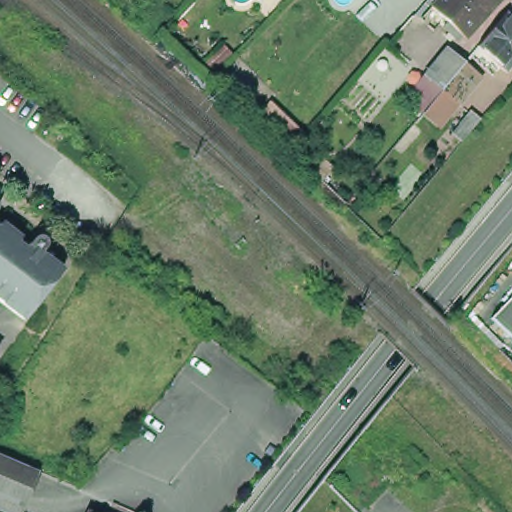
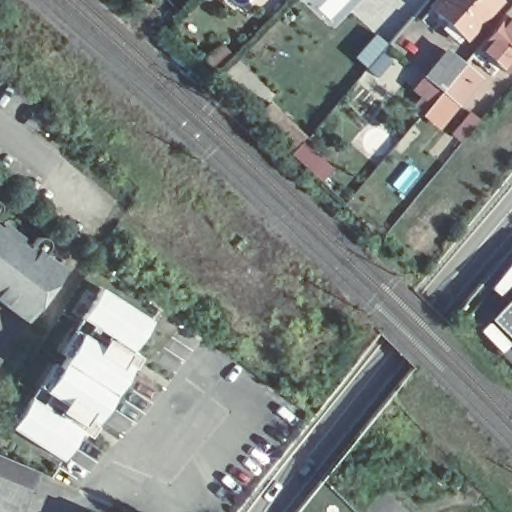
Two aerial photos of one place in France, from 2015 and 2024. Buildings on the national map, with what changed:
unchanged [(442,19),(426,4),(429,0),(488,0),(458,33),(456,31),(454,34),(450,35),(438,23),(442,19)]
unchanged [(464,51),(472,42),(499,9),(512,20),(512,55),(502,68),(489,56),(481,66),(464,51)]
unchanged [(421,25),(406,41),(397,34),(410,18),(412,16),(421,25)]
unchanged [(213,73),(204,63),(223,45),(232,55),(213,73)]
unchanged [(421,83),(426,76),(423,74),(444,48),(458,59),(474,71),(452,98),(433,121),(418,108),(432,91),(421,83)]
unchanged [(469,111),(479,120),(462,141),(452,133),(469,111)]
demolished [(55,198),(51,202),(45,197),(49,192),(48,192),(53,186),(63,174),(97,202),(86,214),(83,220),(55,198)]
unchanged [(23,235),(24,233),(26,233),(28,232),(29,232),(31,232),(33,233),(34,234),(35,235),(36,237),(36,239),(36,241),(36,242),(35,244),(31,250),(52,265),(14,315),(0,304),(0,226),(18,241),(23,235)]
unchanged [(481,317),(512,286),(512,347),(481,317)]
new [(128,355),(124,361),(131,367),(95,425),(88,419),(83,427),(60,464),(10,429),(101,288),(152,322),(128,355)]
unchanged [(0,452),(31,466),(23,485),(11,512),(0,512),(0,452)]

